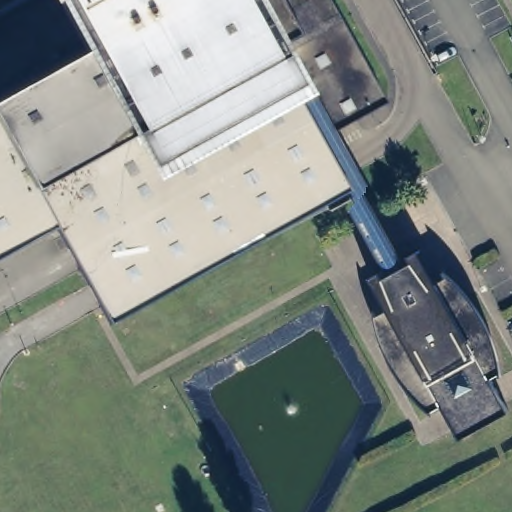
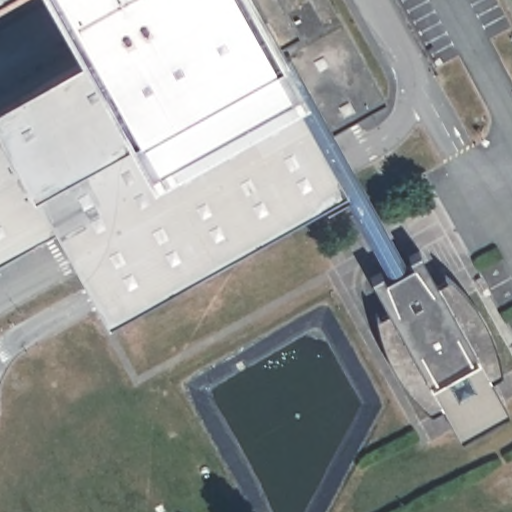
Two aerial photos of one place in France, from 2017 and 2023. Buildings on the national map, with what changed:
unchanged [(0,258),(0,80),(75,39),(56,0),(333,0),(385,101),(338,127),(403,250),(414,245),(432,279),(450,267),(483,318),(498,359),(500,372),(489,374),(502,405),(458,432),(440,402),(432,407),(404,377),(385,342),(378,313),(392,304),(376,276),(385,267),(341,189),(256,243),(112,314),(55,228),(0,258)]

